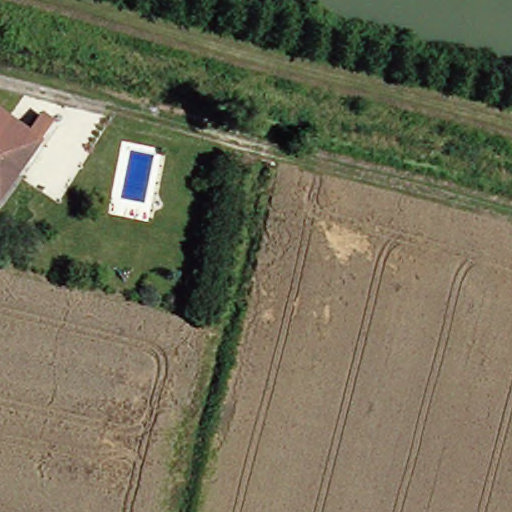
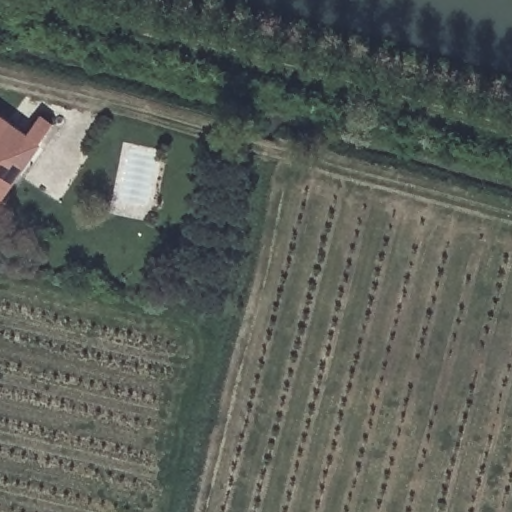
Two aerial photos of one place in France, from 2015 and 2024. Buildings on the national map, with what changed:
unchanged [(42,121),(52,127),(37,147),(29,141),(42,121)]
unchanged [(0,157),(0,122),(17,133),(0,157)]

